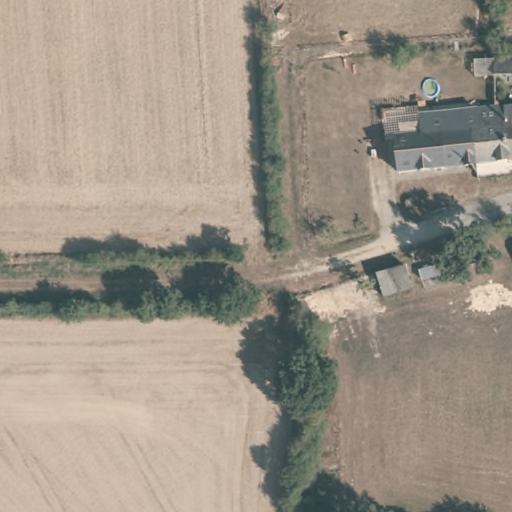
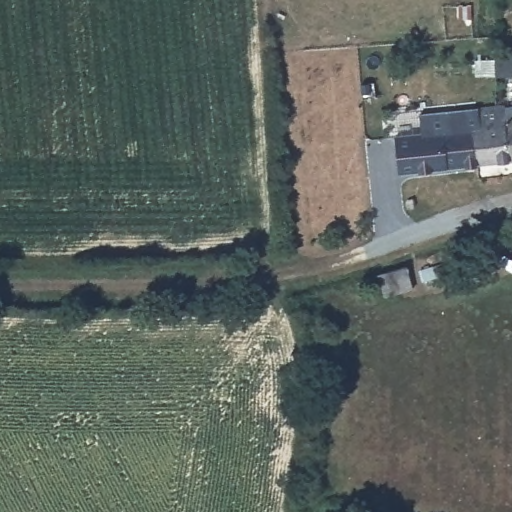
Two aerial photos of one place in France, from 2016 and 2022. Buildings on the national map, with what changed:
unchanged [(496,53),(512,52),(512,70),(497,71),(496,53)]
unchanged [(486,127),(485,108),(502,106),(510,105),(512,116),(512,160),(482,163),(480,129),(486,127)]
unchanged [(404,171),(401,162),(391,163),(391,150),(402,147),(399,134),(407,132),(410,122),(414,123),(416,118),(422,119),(424,111),(473,109),(485,108),(486,127),(480,129),(482,163),(404,171)]
unchanged [(418,295),(399,300),(388,264),(407,258),(418,295)]

